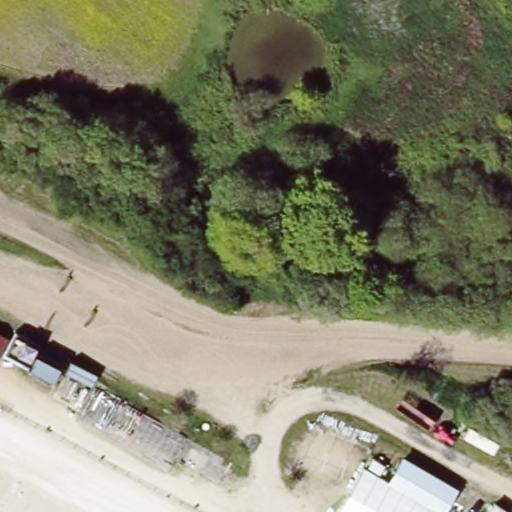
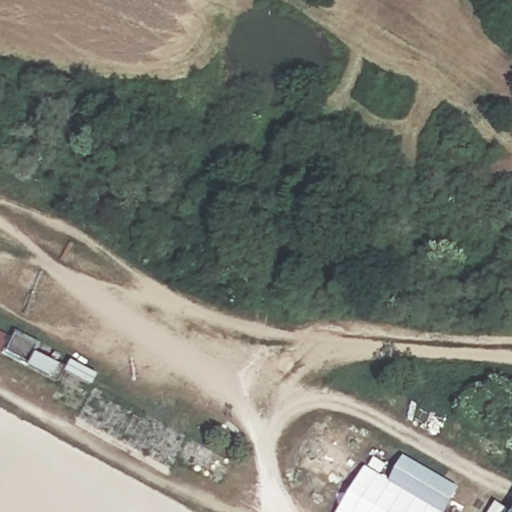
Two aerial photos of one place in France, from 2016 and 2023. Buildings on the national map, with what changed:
unchanged [(16,332),(40,342),(35,352),(70,368),(73,359),(100,373),(86,397),(4,357),(16,332)]
unchanged [(390,479),(404,455),(440,476),(426,502),(444,512),(340,512),(367,465),(390,479)]

